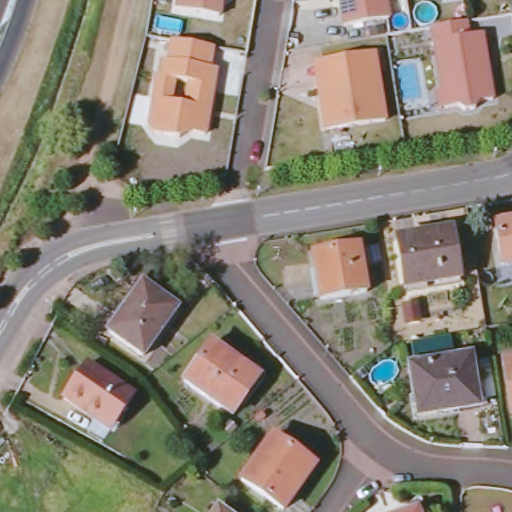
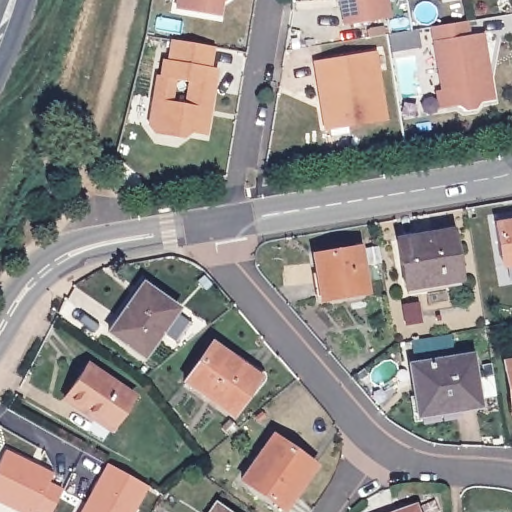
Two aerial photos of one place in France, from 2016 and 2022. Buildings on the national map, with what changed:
unchanged [(223,0),(221,16),(178,9),(179,0),(223,0)]
unchanged [(347,26),(343,0),(388,0),(392,19),(347,26)]
unchanged [(438,93),(444,92),(434,28),(468,22),(470,37),(484,34),(490,71),(486,72),(487,78),(491,78),(495,100),(482,103),(476,110),(467,112),(458,106),(442,109),(438,93)]
unchanged [(215,46),(212,66),(218,68),(207,134),(190,131),(182,137),(158,133),(152,124),(160,74),(163,75),(166,59),(171,60),(175,39),(215,46)]
unchanged [(387,121),(327,130),(320,81),(317,61),(327,60),(376,52),(387,121)]
unchanged [(512,223),(512,265),(502,267),(495,225),(512,223)]
unchanged [(397,241),(450,232),(458,280),(404,289),(397,241)]
unchanged [(312,255),(358,248),(365,293),(319,301),(312,255)]
unchanged [(108,333),(143,285),(177,310),(142,357),(108,333)]
unchanged [(185,383),(212,345),(243,366),(240,370),(256,381),(232,415),(185,383)]
unchanged [(428,350),(440,348),(441,354),(429,357),(428,350)]
unchanged [(410,366),(470,356),(479,407),(418,416),(410,366)]
unchanged [(88,416),(64,400),(88,365),(132,396),(113,425),(110,430),(88,416)]
unchanged [(512,365),(512,396),(507,366),(512,365)]
unchanged [(243,481),(275,437),(315,466),(283,509),(243,481)]
new [(35,511),(35,512),(19,512),(0,503),(0,462),(5,452),(53,476),(49,484),(62,491),(51,512),(37,512),(35,511)]
new [(147,488),(134,512),(84,512),(94,495),(92,494),(107,465),(147,488)]

